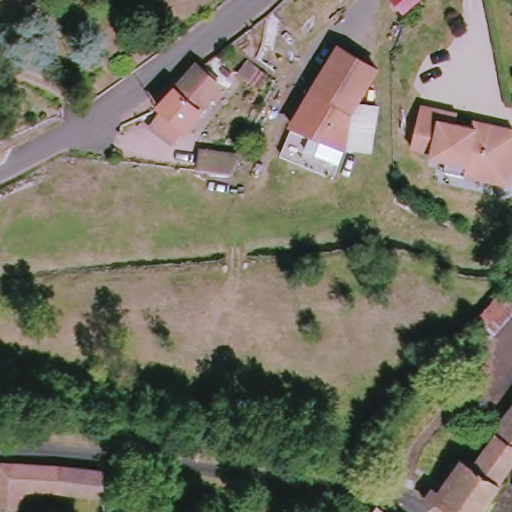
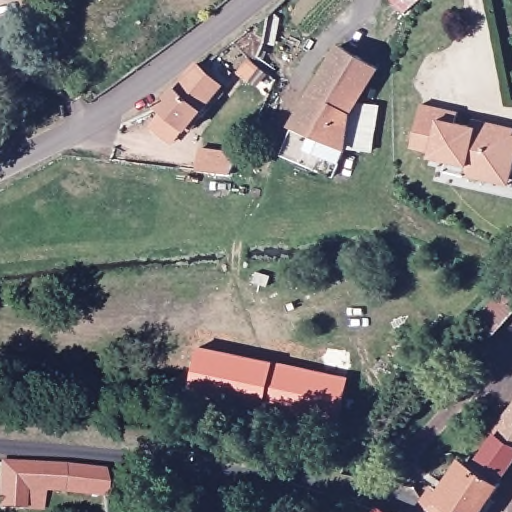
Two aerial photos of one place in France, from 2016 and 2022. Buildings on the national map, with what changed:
unchanged [(404,11),(393,0),(416,0),(404,11)]
unchanged [(346,112),(343,147),(331,177),(278,156),(290,128),(288,127),(334,47),(372,68),(352,102),(346,112)]
unchanged [(188,133),(178,125),(166,141),(147,126),(158,110),(153,106),(170,89),(189,66),(193,68),(216,87),(213,92),(218,95),(213,102),(198,120),(188,133)]
unchanged [(373,107),(367,151),(343,147),(346,112),(352,102),(373,107)]
unchanged [(461,175),(442,171),(443,161),(426,157),(426,151),(408,147),(416,104),(455,112),(454,122),(465,125),(466,118),(479,121),(509,126),(508,132),(512,133),(512,147),(508,172),(506,184),(486,180),(461,175)]
unchanged [(228,172),(198,169),(198,165),(199,149),(238,155),(230,167),(228,172)]
unchanged [(494,332),(479,319),(512,282),(512,311),(494,332)]
new [(193,347),(341,381),(330,427),(182,393),(193,347)]
unchanged [(470,470),(512,412),(512,459),(494,484),(497,486),(479,512),(431,512),(422,504),(426,498),(433,498),(458,462),(465,466),(470,470)]
unchanged [(20,510),(0,508),(0,461),(55,465),(98,470),(101,497),(39,491),(39,508),(20,507),(20,510)]

